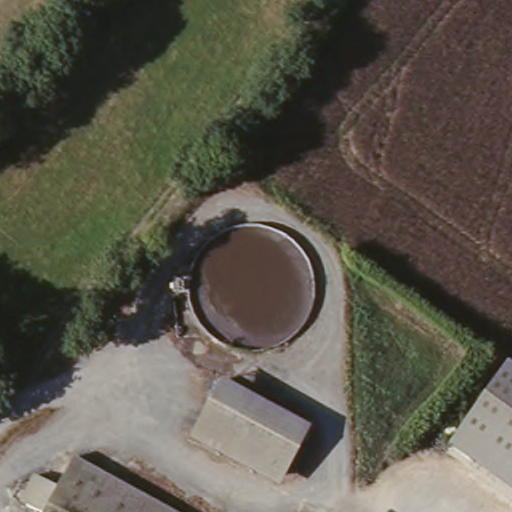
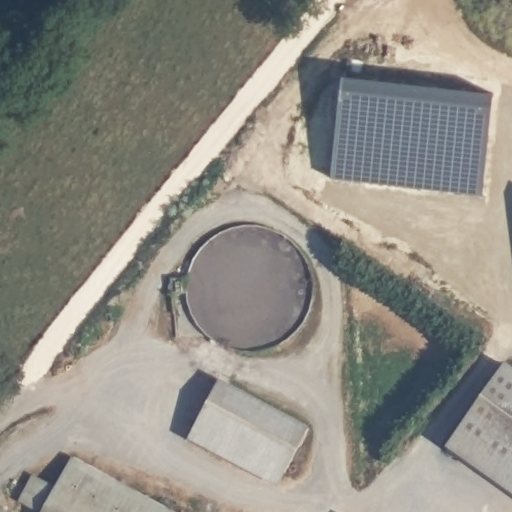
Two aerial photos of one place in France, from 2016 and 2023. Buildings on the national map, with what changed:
new [(477,196),(336,179),(347,79),(490,96),(479,183),(477,196)]
unchanged [(512,367),(512,493),(448,447),(507,363),(512,367)]
unchanged [(227,376),(317,423),(286,483),(196,435),(227,376)]
unchanged [(174,512),(44,512),(70,458),(174,512)]

